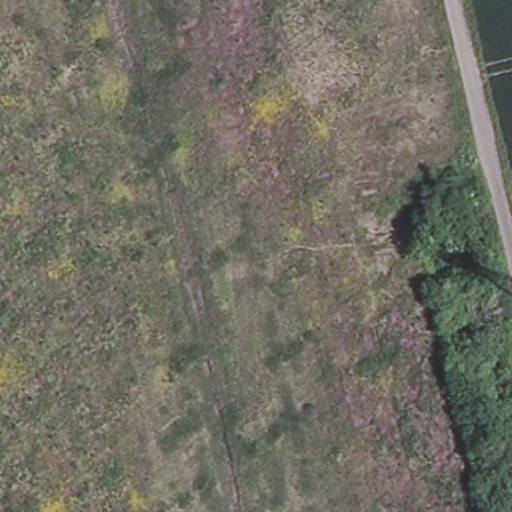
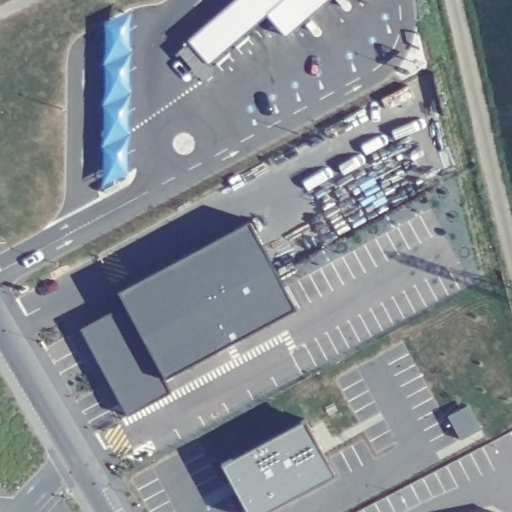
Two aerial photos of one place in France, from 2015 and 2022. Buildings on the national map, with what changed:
new [(125,306),(119,295),(251,225),(296,312),(165,380),(171,395),(128,417),(80,329),(125,306)]
new [(338,480),(271,512),(247,512),(223,467),(305,423),(338,480)]

